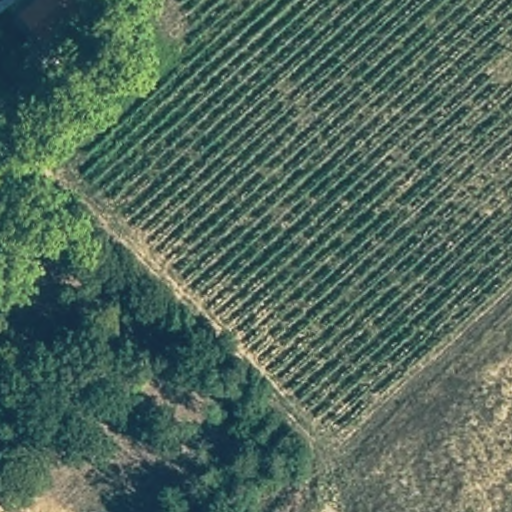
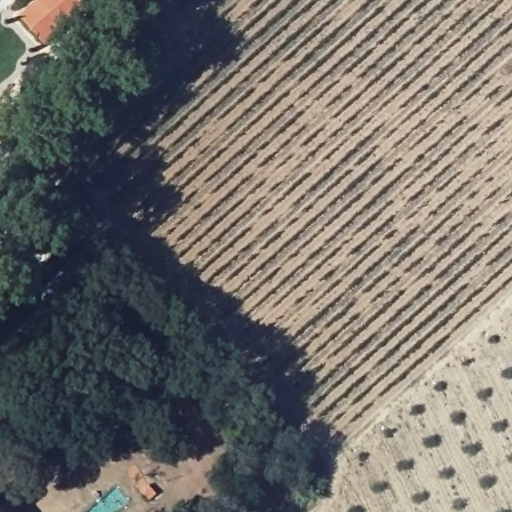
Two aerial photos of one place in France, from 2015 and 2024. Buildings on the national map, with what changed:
unchanged [(85,7),(40,46),(19,22),(42,0),(78,0),(85,7)]

